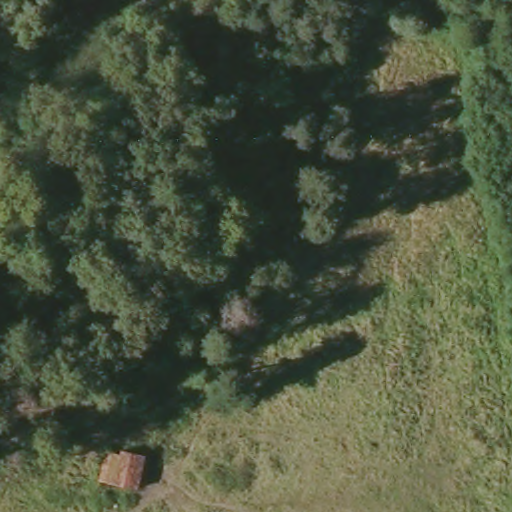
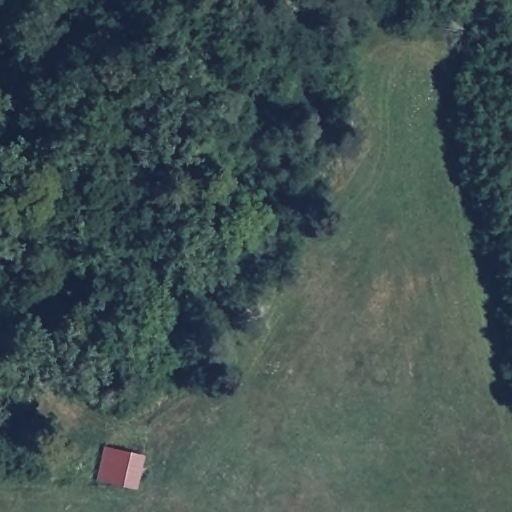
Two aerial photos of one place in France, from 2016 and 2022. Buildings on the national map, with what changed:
unchanged [(138,478),(94,470),(99,447),(141,452),(138,478)]

